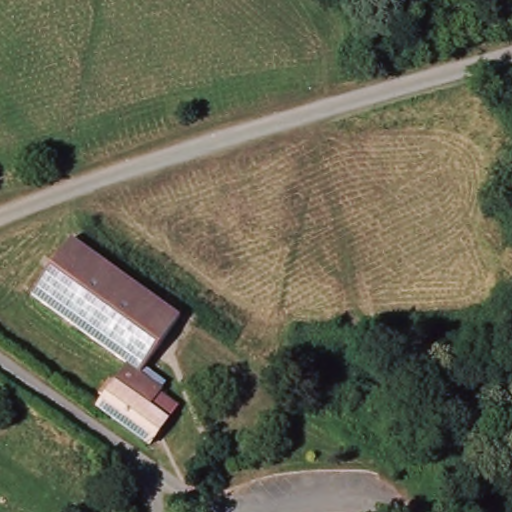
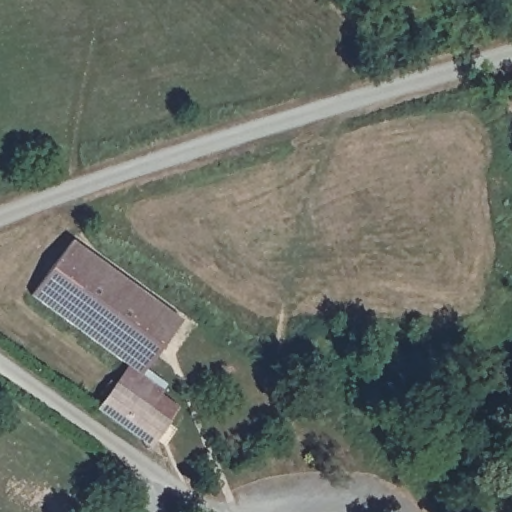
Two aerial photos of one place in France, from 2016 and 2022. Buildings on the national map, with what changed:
unchanged [(180,315),(140,369),(161,385),(159,389),(177,402),(150,441),(113,414),(98,404),(126,365),(129,361),(31,290),(71,235),(180,315)]

